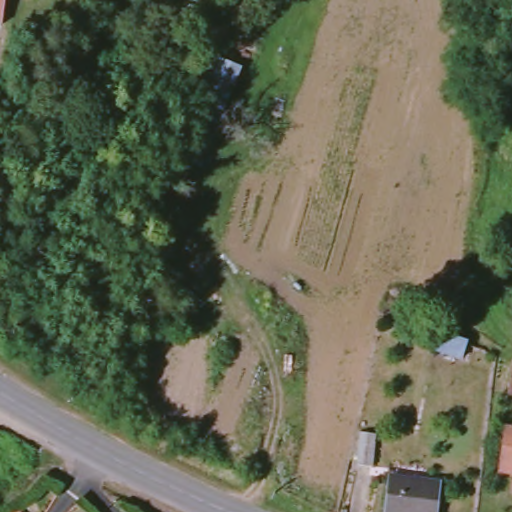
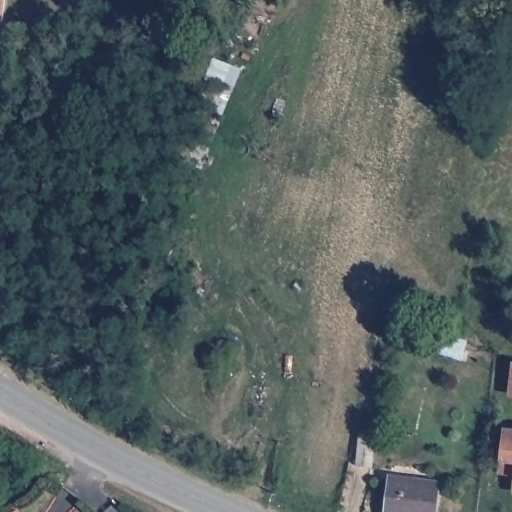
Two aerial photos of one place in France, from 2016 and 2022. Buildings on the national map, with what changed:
unchanged [(0,26),(0,0),(4,0),(0,26)]
unchanged [(201,170),(169,157),(207,55),(243,67),(201,170)]
unchanged [(510,365),(512,365),(512,394),(508,393),(510,365)]
unchanged [(355,450),(360,418),(376,420),(371,452),(355,450)]
unchanged [(506,437),(512,438),(512,483),(501,481),(506,437)]
unchanged [(386,476),(434,482),(430,512),(381,512),(386,476)]

